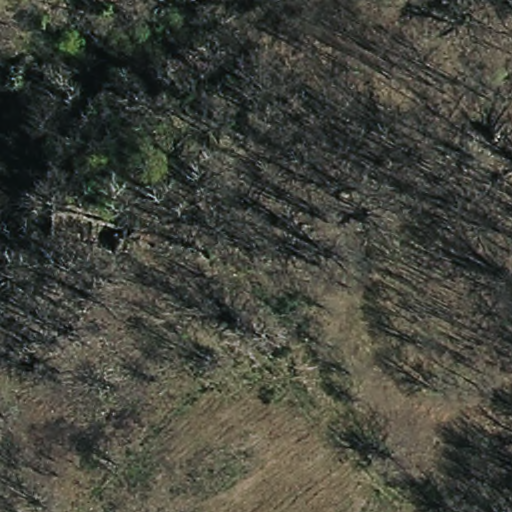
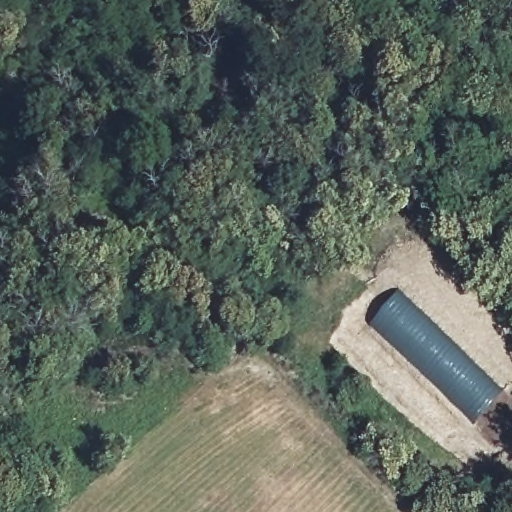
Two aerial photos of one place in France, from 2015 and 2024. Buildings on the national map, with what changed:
demolished [(18,191),(77,212),(73,242),(5,219),(18,191)]
demolished [(88,205),(135,208),(133,235),(87,232),(88,214),(88,205)]
new [(473,422),(370,323),(400,290),(505,389),(473,422)]

